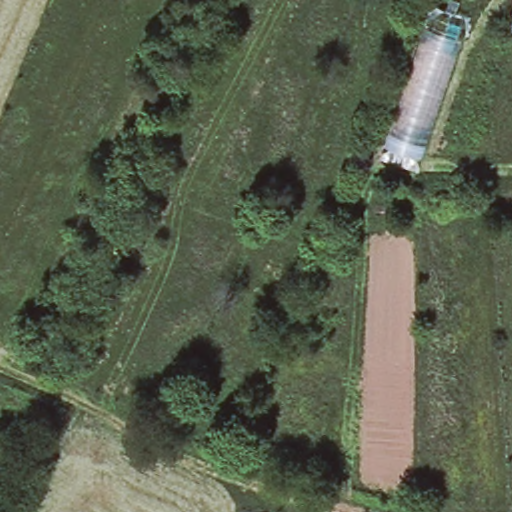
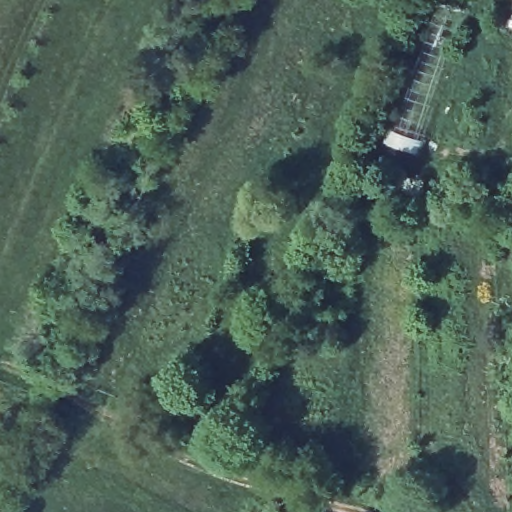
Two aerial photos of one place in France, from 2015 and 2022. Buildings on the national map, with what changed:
unchanged [(432,0),(465,0),(472,2),(417,163),(380,151),(432,0)]

